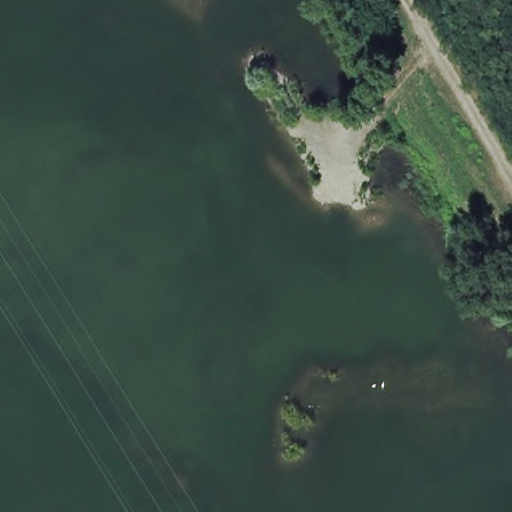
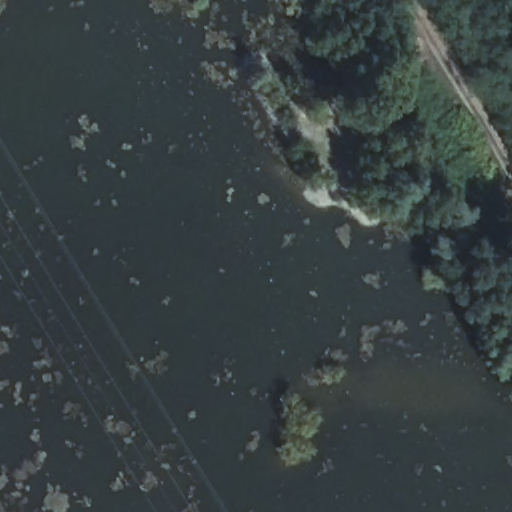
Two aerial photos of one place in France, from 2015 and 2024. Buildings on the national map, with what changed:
[]

